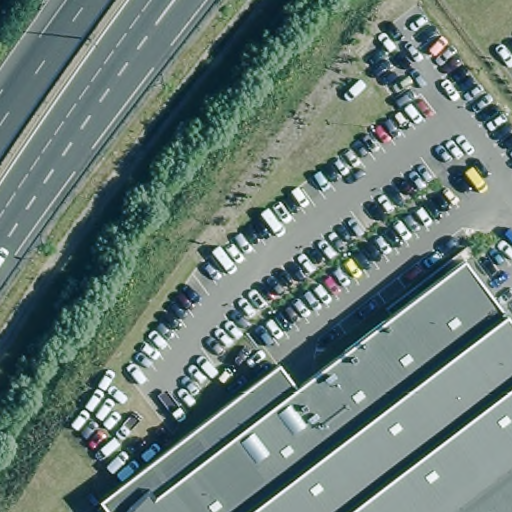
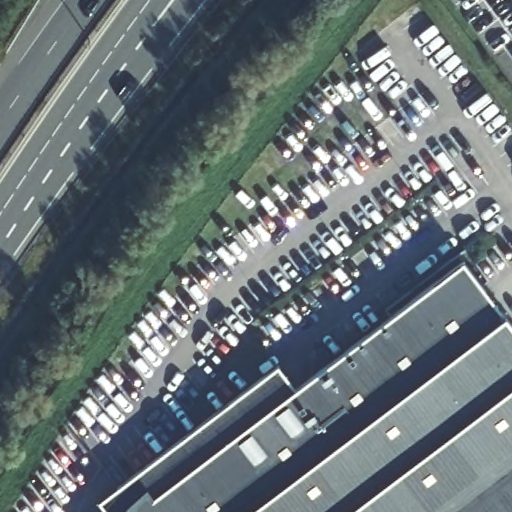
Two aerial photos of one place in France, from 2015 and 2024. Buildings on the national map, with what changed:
unchanged [(512,512),(107,512),(99,502),(280,364),(297,388),(464,259),(512,322),(512,512)]

